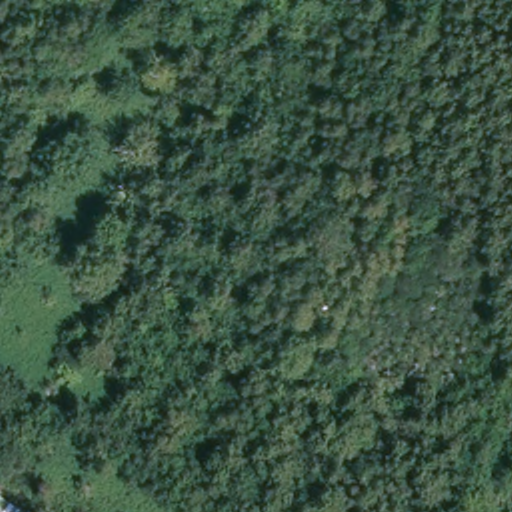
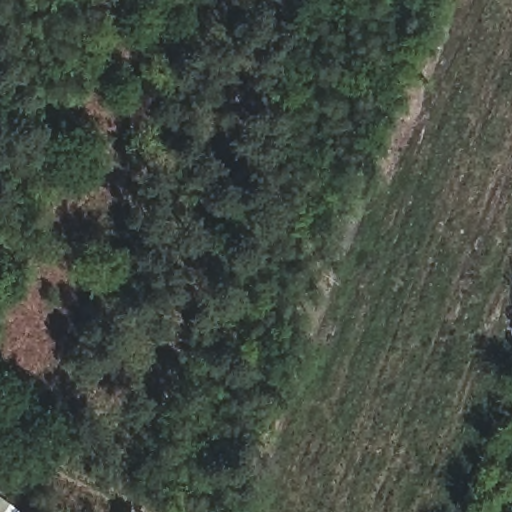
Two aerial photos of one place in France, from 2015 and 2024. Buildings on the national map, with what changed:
unchanged [(23,512),(0,512),(0,498),(23,512)]

